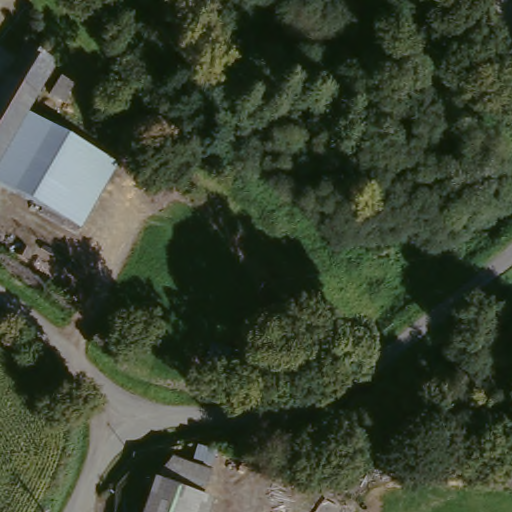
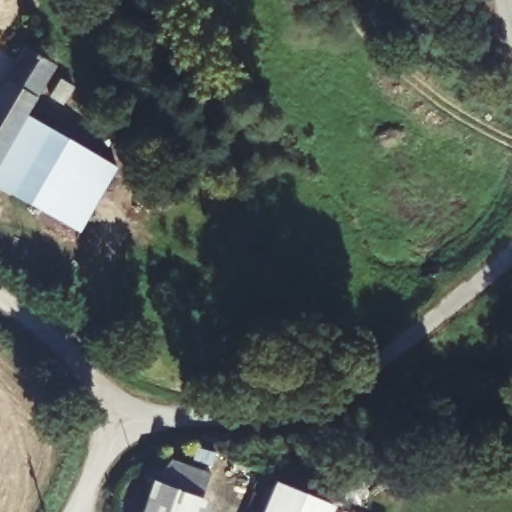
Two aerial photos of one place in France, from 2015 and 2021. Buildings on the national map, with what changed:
unchanged [(11,82),(31,46),(62,65),(34,114),(0,172),(0,100),(5,91),(11,82)]
unchanged [(0,172),(34,114),(121,165),(82,228),(0,181),(0,172)]
unchanged [(204,496),(198,512),(146,512),(157,481),(204,496)]
new [(281,485),(336,508),(334,512),(269,512),(281,485)]

